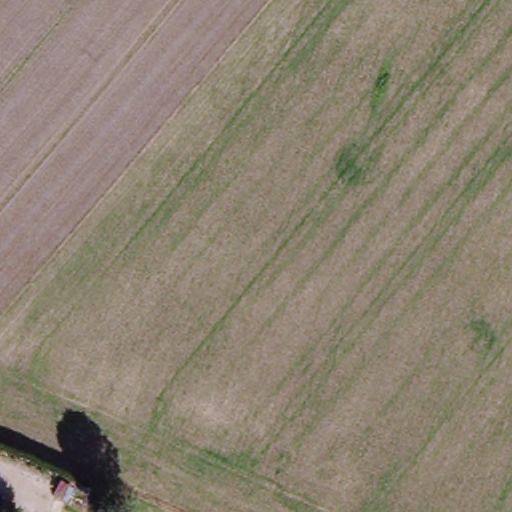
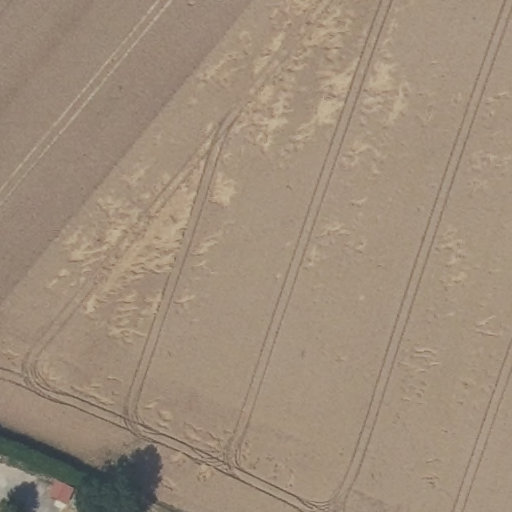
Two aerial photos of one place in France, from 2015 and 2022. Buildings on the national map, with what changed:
[]

